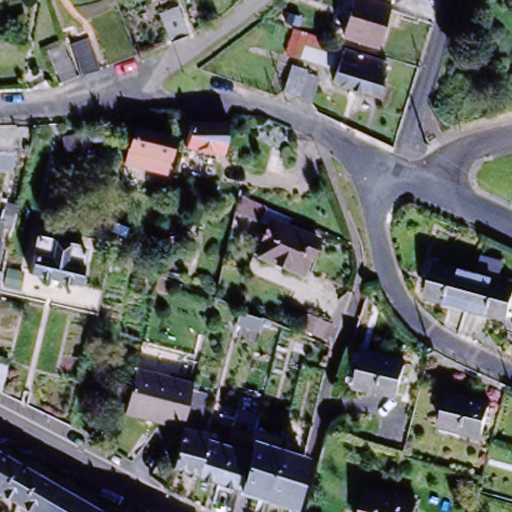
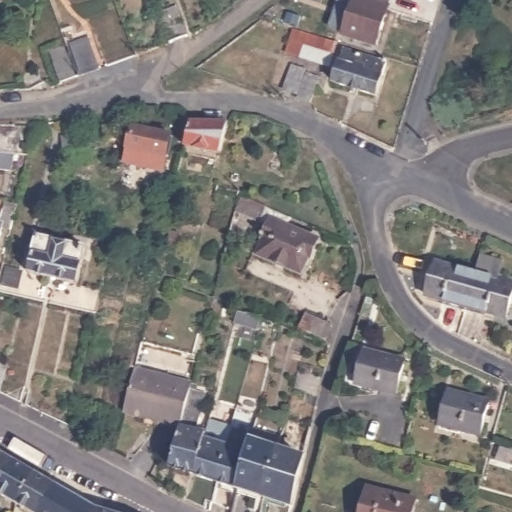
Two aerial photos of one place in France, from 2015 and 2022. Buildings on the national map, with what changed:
unchanged [(376,51),(343,41),(356,0),(391,0),(393,0),(376,51)]
unchanged [(159,13),(176,5),(188,34),(170,41),(159,13)]
unchanged [(297,63),(282,58),(290,34),(305,38),(335,48),(327,72),(297,63)]
unchanged [(80,77),(68,46),(85,39),(96,71),(80,77)]
unchanged [(49,52),(64,46),(75,79),(60,85),(49,52)]
unchanged [(387,69),(377,101),(332,87),(341,56),(387,69)]
unchanged [(304,72),(296,97),(283,93),(290,68),(304,72)]
unchanged [(318,84),(311,108),(297,104),(305,80),(318,84)]
unchanged [(227,124),(219,155),(184,146),(190,121),(227,124)]
unchanged [(172,138),(165,174),(125,165),(133,129),(172,138)]
unchanged [(85,133),(87,147),(64,151),(61,137),(85,133)]
unchanged [(27,166),(0,160),(0,136),(34,136),(27,166)]
unchanged [(304,234),(300,245),(270,232),(267,237),(236,225),(240,206),(304,234)]
unchanged [(270,232),(300,245),(317,252),(310,271),(307,270),(300,286),(258,268),(264,252),(261,250),(267,237),(270,232)]
unchanged [(82,247),(75,283),(27,273),(35,237),(82,247)]
unchanged [(507,322),(465,311),(426,300),(434,268),(475,280),(481,259),(502,265),(496,285),(512,290),(512,304),(507,322)]
unchanged [(332,324),(325,343),(298,332),(306,313),(332,324)]
unchanged [(403,367),(394,399),(355,388),(364,356),(403,367)]
unchanged [(3,395),(0,393),(0,362),(9,365),(3,395)]
unchanged [(194,482),(169,474),(179,435),(121,421),(132,376),(190,390),(189,395),(205,400),(195,437),(204,441),(194,482)]
unchanged [(444,437),(446,428),(438,425),(447,394),(487,405),(479,437),(475,446),(444,437)]
unchanged [(261,505),(236,497),(216,490),(194,482),(204,441),(206,428),(230,435),(240,438),(249,441),(251,433),(277,442),(273,455),(297,463),(285,512),(281,512),(261,505)]
unchanged [(19,506),(0,494),(0,452),(16,461),(37,474),(58,486),(91,505),(96,508),(98,508),(109,512),(29,512),(19,506)]
unchanged [(416,498),(413,512),(361,512),(367,486),(416,498)]

